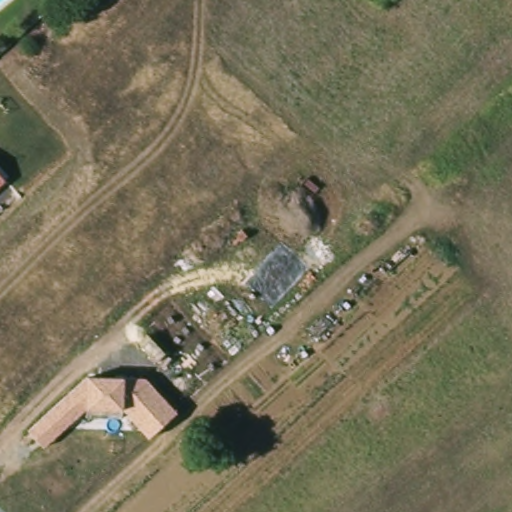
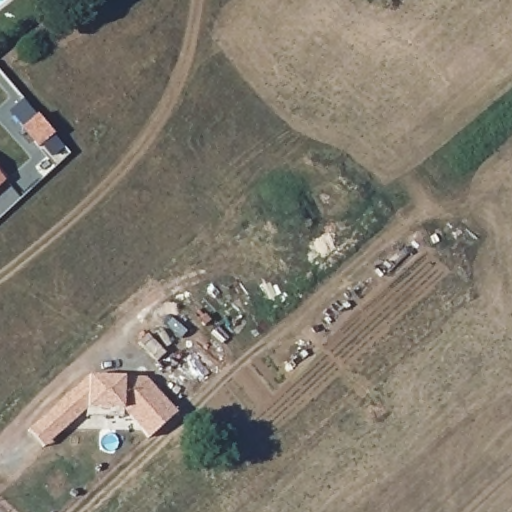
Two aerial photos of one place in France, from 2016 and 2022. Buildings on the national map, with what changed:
unchanged [(0,184),(0,174),(5,180),(0,184)]
unchanged [(89,374),(146,376),(179,411),(149,439),(122,410),(122,417),(87,415),(87,408),(45,447),(27,428),(89,374)]

